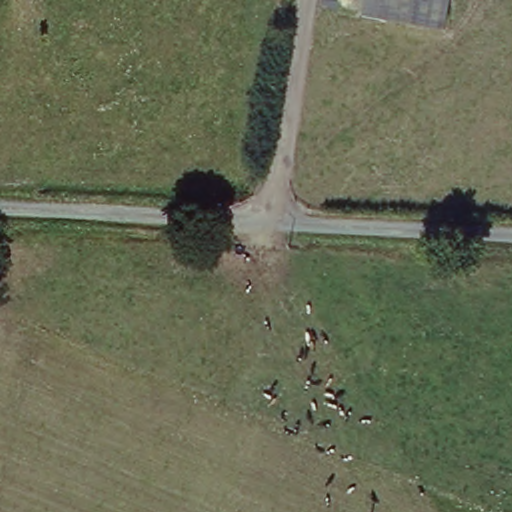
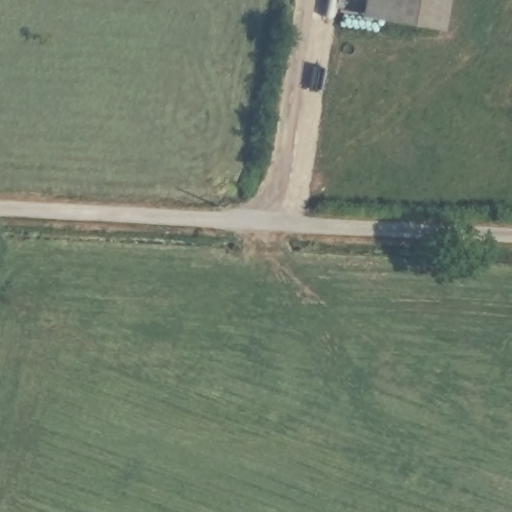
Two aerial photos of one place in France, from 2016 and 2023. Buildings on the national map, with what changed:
unchanged [(368,0),(450,0),(444,30),(366,18),(368,0)]

